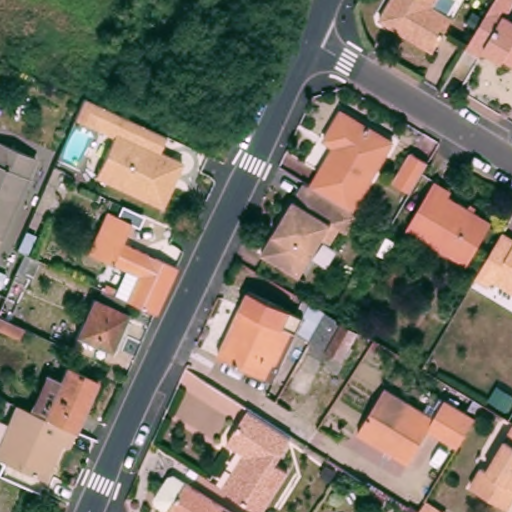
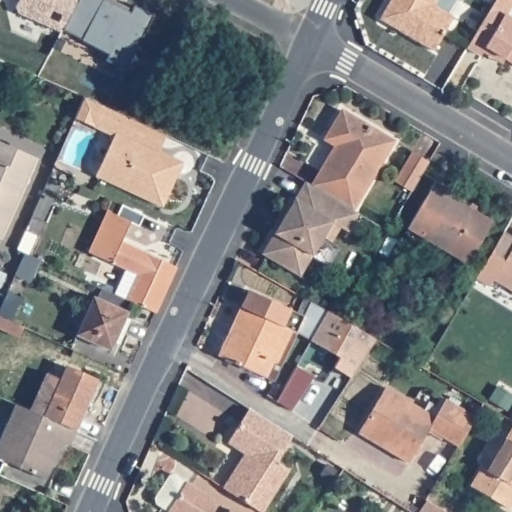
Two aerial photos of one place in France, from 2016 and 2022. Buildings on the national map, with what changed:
new [(61,31),(19,12),(16,6),(19,0),(77,0),(62,29),(61,31)]
new [(135,3),(155,14),(125,70),(105,60),(109,53),(62,29),(77,0),(118,0),(132,8),(135,3)]
unchanged [(394,0),(460,0),(448,19),(453,22),(433,56),(392,31),(380,24),(391,5),(394,0)]
unchanged [(482,58),(480,61),(466,53),(491,11),(497,1),(497,0),(512,0),(512,8),(505,20),(512,24),(512,68),(503,63),(501,68),(483,57),(482,58)]
unchanged [(160,135),(153,153),(177,164),(157,209),(92,178),(109,136),(89,128),(98,106),(138,125),(160,135)]
unchanged [(311,185),(321,168),(331,151),(335,145),(324,139),(341,110),(393,140),(352,209),(311,185)]
unchanged [(1,243),(0,242),(0,146),(36,163),(1,243)]
unchanged [(411,191),(394,182),(411,151),(429,161),(411,191)]
unchanged [(452,255),(407,228),(435,180),(452,190),(448,196),(492,221),(470,258),(467,263),(452,255)]
unchanged [(352,209),(358,213),(347,231),(340,227),(331,241),(323,237),(300,276),(262,254),(274,232),(283,218),(294,199),(304,181),(305,181),(309,184),(311,185),(352,209)]
unchanged [(123,298),(134,274),(87,252),(106,210),(129,222),(121,241),(176,267),(155,313),(123,298)]
unchanged [(17,271),(25,253),(23,252),(17,249),(25,231),(36,235),(27,254),(38,259),(30,277),(17,271)]
unchanged [(499,285),(495,292),(481,283),(491,265),(508,238),(512,240),(512,292),(499,285)]
unchanged [(218,355),(229,332),(241,306),(249,290),(297,313),(304,298),(337,317),(358,330),(342,359),(329,351),(324,359),(309,351),(314,343),(296,332),(274,381),(266,377),(218,355)]
unchanged [(127,312),(111,350),(75,335),(92,297),(127,312)]
unchanged [(18,336),(0,327),(0,316),(22,326),(18,336)]
unchanged [(45,373),(58,379),(64,365),(97,380),(75,430),(37,413),(29,410),(45,373)]
unchanged [(496,386),(512,395),(512,399),(506,409),(489,399),(496,386)]
unchanged [(355,436),(358,432),(385,387),(434,417),(445,399),(475,417),(455,450),(426,433),(408,463),(405,467),(355,436)]
unchanged [(75,430),(68,447),(61,444),(46,479),(0,459),(0,441),(16,404),(29,410),(37,413),(75,430)]
unchanged [(223,493),(245,459),(227,447),(249,414),(292,441),(275,468),(288,476),(265,512),(253,512),(242,505),(228,496),(227,496),(223,493)]
unchanged [(503,508),(466,486),(478,467),(483,470),(511,423),(512,423),(512,492),(503,508)]
unchanged [(156,503),(154,498),(169,476),(174,474),(233,512),(170,512),(156,503)]

